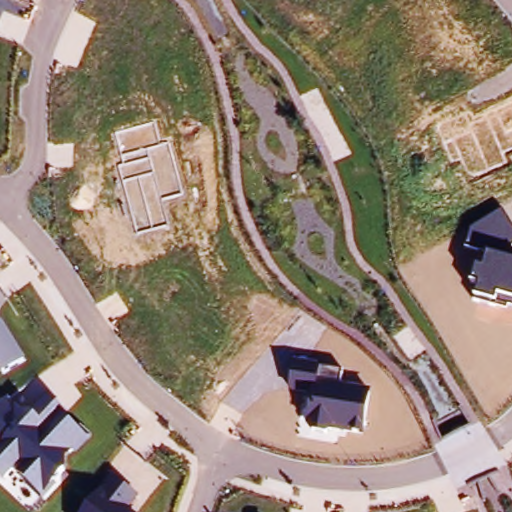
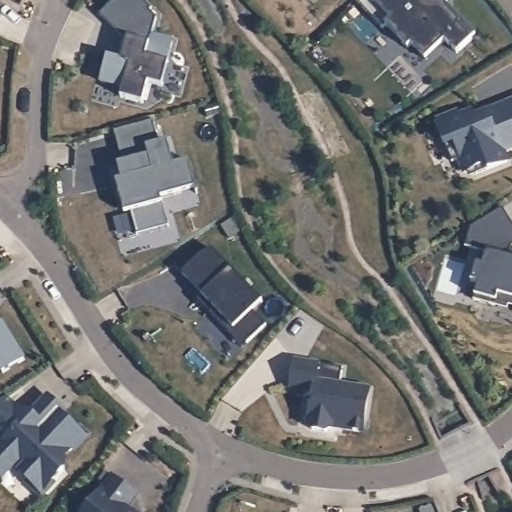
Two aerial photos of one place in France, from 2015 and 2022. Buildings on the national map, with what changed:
new [(115,0),(144,0),(153,9),(151,11),(158,18),(153,36),(174,41),(168,62),(170,63),(163,87),(149,83),(143,103),(121,97),(124,88),(102,81),(109,56),(123,60),(129,39),(123,38),(100,14),(115,0)]
new [(447,9),(461,23),(459,25),(472,39),(457,53),(445,41),(426,59),(411,45),(408,48),(386,25),(383,28),(355,0),(447,0),(447,9)]
unchanged [(471,176),(469,171),(464,173),(459,158),(453,161),(436,117),(458,109),(459,115),(474,109),(476,114),(489,108),(512,99),(512,151),(507,153),(511,161),(483,172),(471,176)]
new [(138,235),(133,210),(125,212),(118,181),(123,180),(119,164),(123,162),(115,131),(154,121),(161,145),(168,142),(175,167),(189,163),(196,188),(159,198),(161,204),(168,228),(138,235)]
unchanged [(512,311),(473,300),(479,282),(472,279),(476,262),(484,266),(487,252),(466,246),(472,225),(503,208),(512,223),(512,311)]
new [(203,254),(214,247),(261,298),(251,307),(267,325),(248,343),(234,328),(229,333),(211,312),(216,307),(203,294),(204,293),(184,271),(203,254)]
unchanged [(3,320),(26,358),(3,373),(0,368),(0,321),(3,320)]
unchanged [(339,382),(370,388),(364,432),(306,424),(310,392),(288,389),(293,359),(339,367),(339,382)]
unchanged [(25,407),(43,392),(92,437),(67,462),(69,465),(41,497),(14,469),(4,480),(0,476),(0,402),(6,397),(25,407)]
unchanged [(138,495),(129,508),(135,512),(82,512),(110,475),(138,495)]

